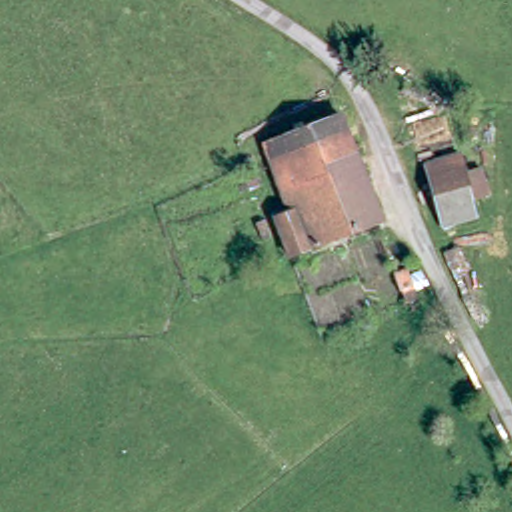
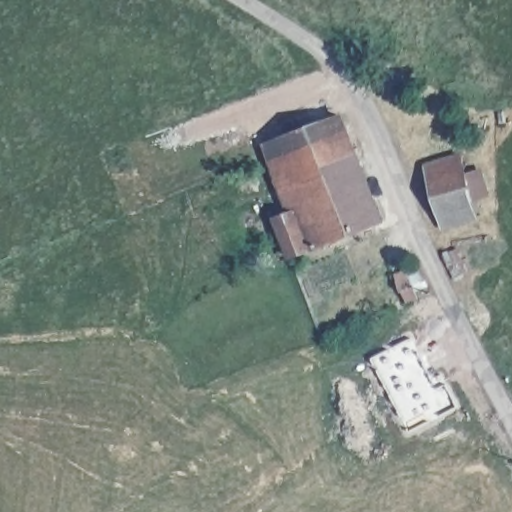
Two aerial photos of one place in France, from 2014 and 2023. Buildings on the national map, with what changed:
unchanged [(264,150),(340,124),(342,129),(348,145),(272,173),(267,156),(264,150)]
unchanged [(288,215),(272,173),(348,145),(379,225),(290,259),(274,220),(288,215)]
unchanged [(470,162),(477,207),(437,214),(428,170),(470,162)]
unchanged [(393,273),(403,268),(415,295),(405,299),(393,273)]

